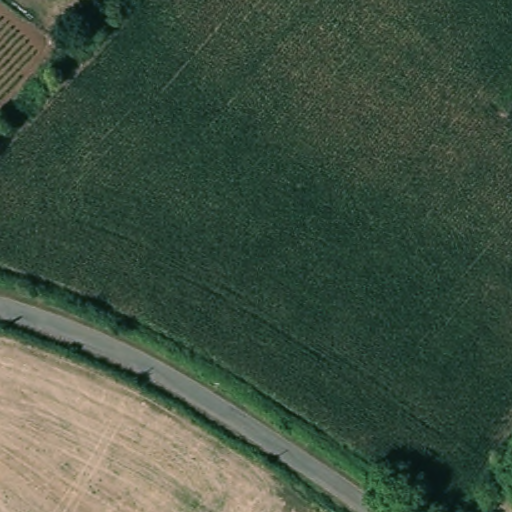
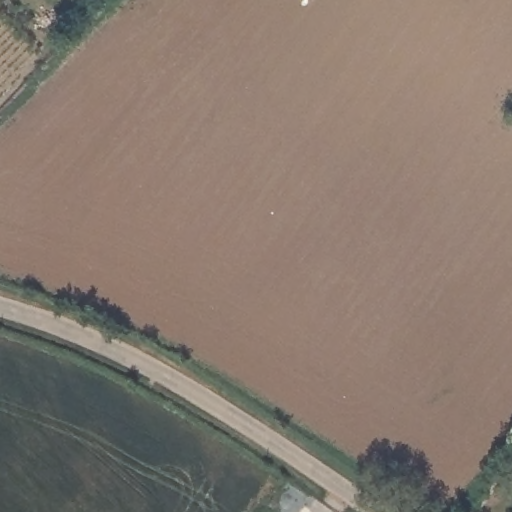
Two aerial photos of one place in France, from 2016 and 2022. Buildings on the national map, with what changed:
[]

